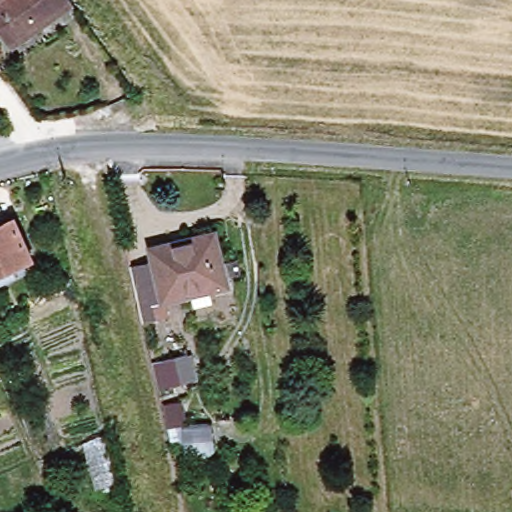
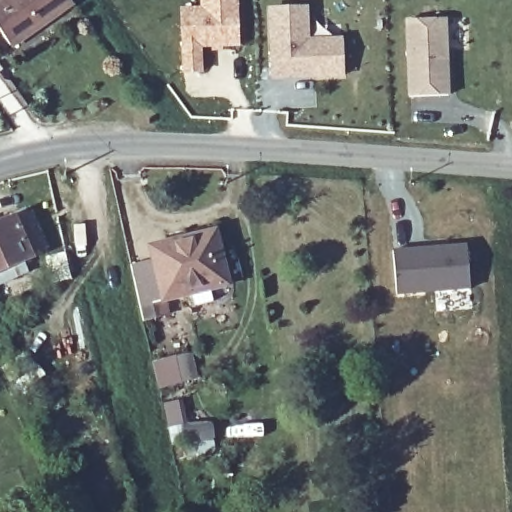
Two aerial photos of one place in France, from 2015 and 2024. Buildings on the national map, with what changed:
unchanged [(4,0),(0,3),(0,0),(4,0)]
unchanged [(67,0),(72,7),(17,46),(0,23),(0,3),(4,0),(67,0)]
new [(201,48),(202,73),(185,74),(183,24),(182,11),(202,10),(202,0),(237,0),(239,46),(201,48)]
new [(308,26),(342,25),(342,40),(344,76),(274,79),(271,11),(307,9),(308,26)]
new [(446,20),(448,95),(410,97),(407,21),(446,20)]
unchanged [(37,263),(0,279),(0,232),(20,224),(37,263)]
unchanged [(152,264),(149,250),(212,239),(226,288),(213,291),(216,302),(196,305),(194,295),(166,301),(169,316),(145,322),(132,267),(152,264)]
new [(467,244),(471,289),(397,294),(393,249),(467,244)]
new [(188,354),(194,381),(164,387),(162,379),(157,380),(154,362),(188,354)]
new [(172,443),(171,434),(165,404),(181,401),(187,431),(180,432),(182,442),(172,443)]

